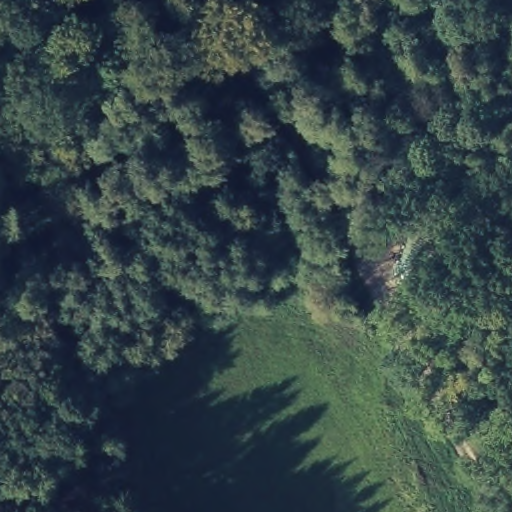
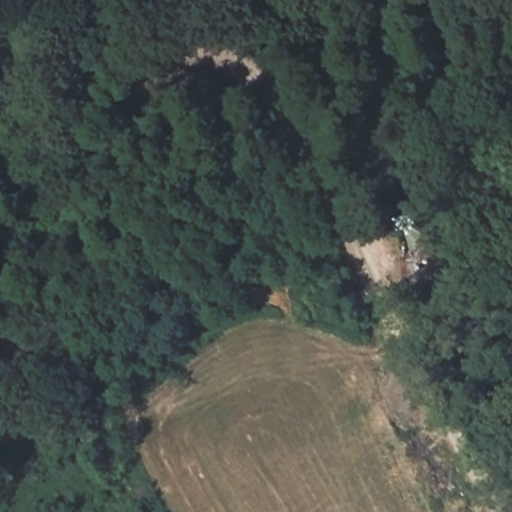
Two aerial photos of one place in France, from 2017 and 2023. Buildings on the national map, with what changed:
[]

